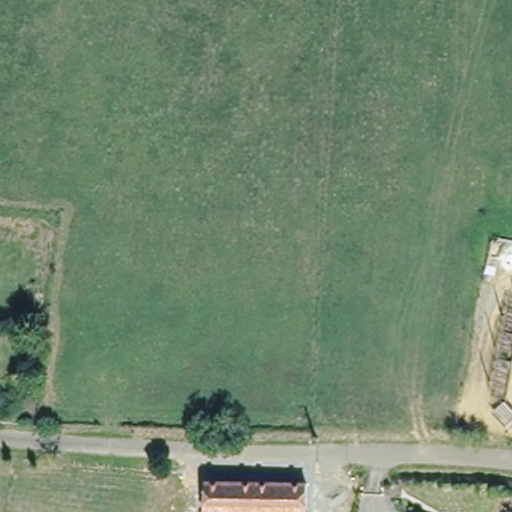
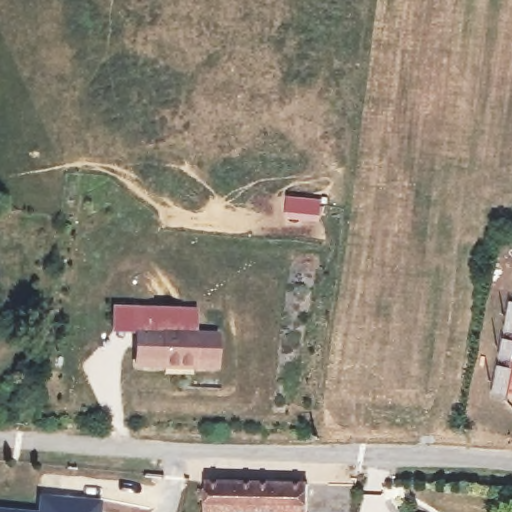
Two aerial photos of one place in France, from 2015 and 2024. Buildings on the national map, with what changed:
unchanged [(512,405),(512,427),(509,430),(495,414),(492,389),(511,301),(512,300),(512,374),(507,398),(512,405)]
new [(127,369),(129,337),(105,335),(107,310),(138,312),(175,314),(189,315),(188,332),(188,338),(210,340),(208,373),(127,369)]
unchanged [(304,512),(280,512),(280,508),(261,507),(261,512),(204,512),(205,482),(305,486),(304,512)]
new [(24,505),(26,488),(83,495),(81,512),(0,512),(0,502),(24,505)]

